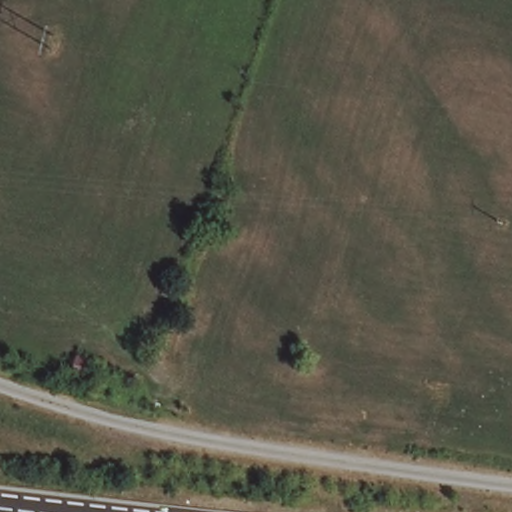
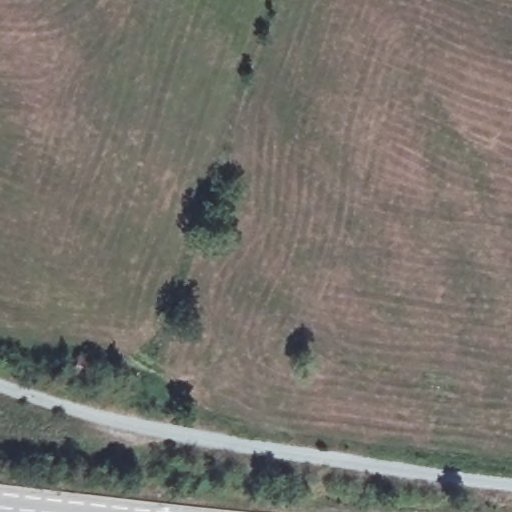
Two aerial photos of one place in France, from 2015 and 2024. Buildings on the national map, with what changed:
unchanged [(67,347),(87,354),(80,377),(59,370),(67,347)]

